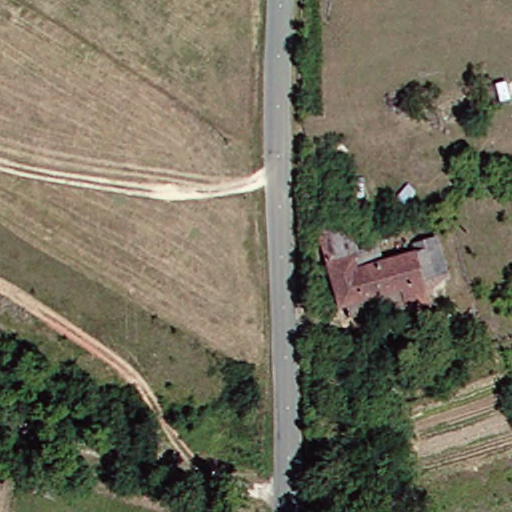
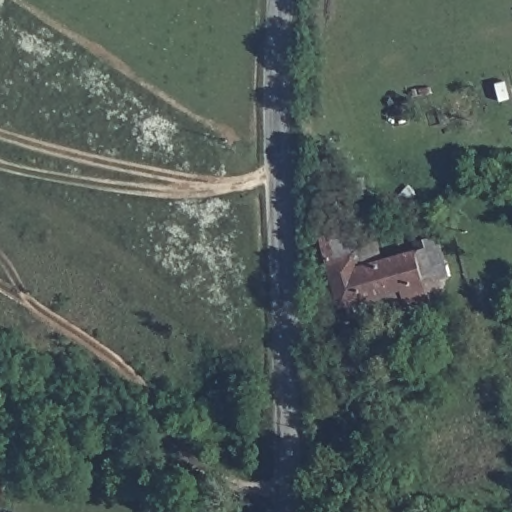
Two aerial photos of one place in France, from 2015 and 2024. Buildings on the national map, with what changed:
unchanged [(367,265),(378,264),(375,251),(388,248),(391,260),(415,252),(437,246),(445,281),(427,301),(428,306),(403,313),(398,293),(336,312),(325,266),(316,242),(345,232),(353,256),(364,256),(367,265)]

